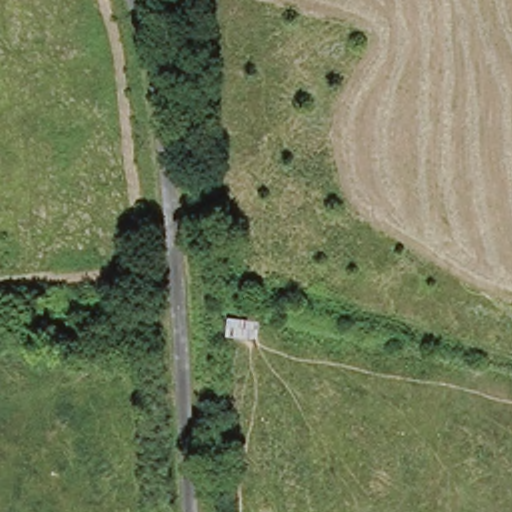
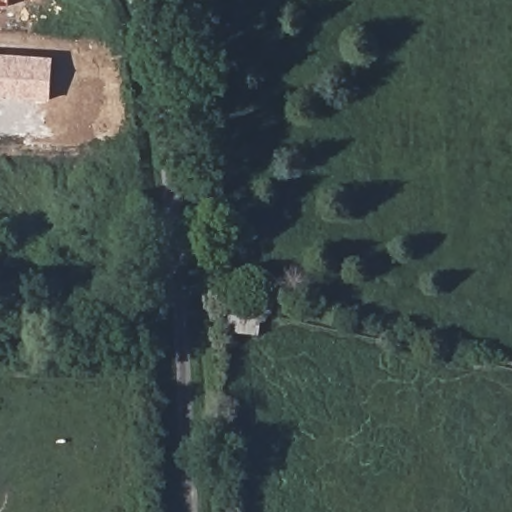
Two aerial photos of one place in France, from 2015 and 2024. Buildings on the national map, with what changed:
new [(0,3),(0,0),(9,0),(9,4),(0,3)]
new [(53,56),(50,99),(0,95),(0,53),(53,56)]

